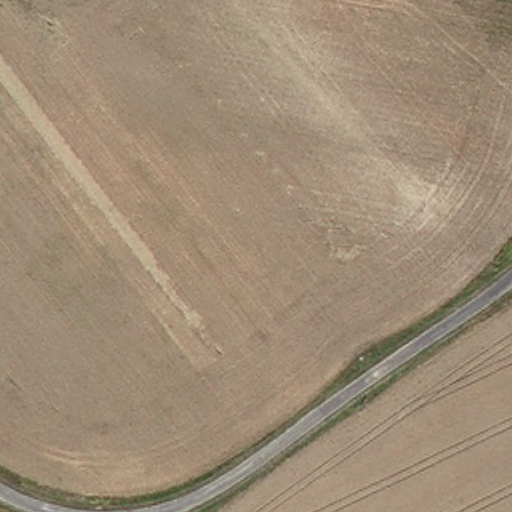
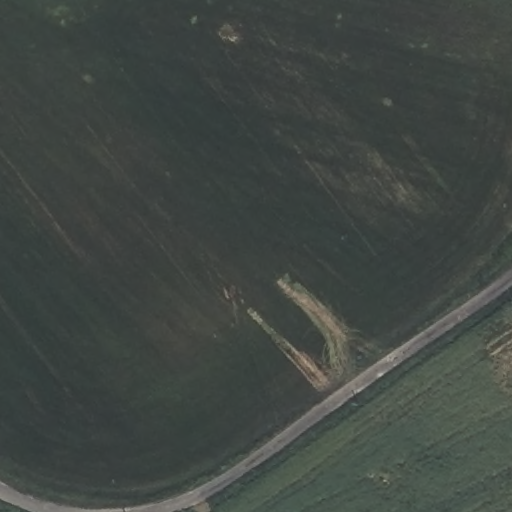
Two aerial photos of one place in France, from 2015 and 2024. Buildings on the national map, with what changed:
[]

